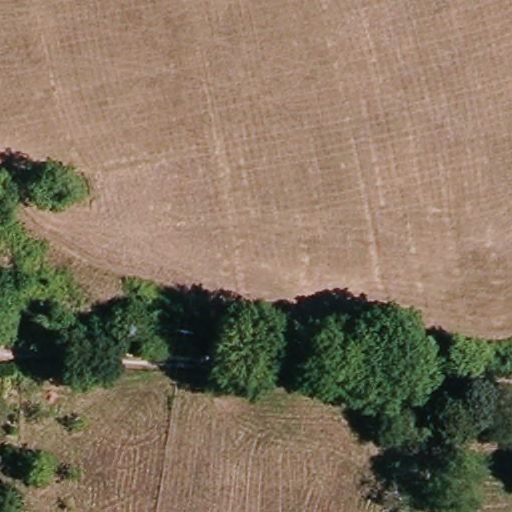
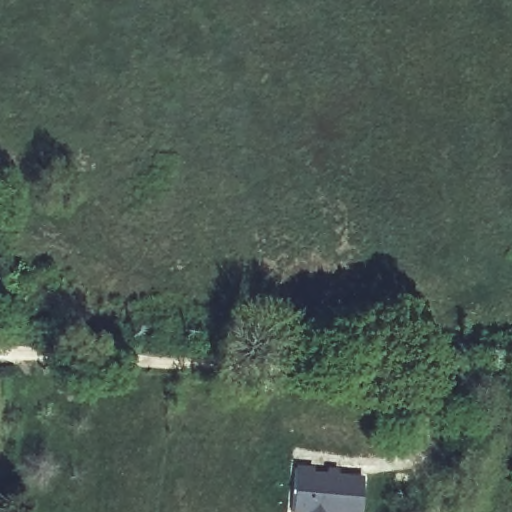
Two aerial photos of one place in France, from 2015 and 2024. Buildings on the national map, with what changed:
new [(311,475),(310,480),(325,480),(325,476),(337,476),(337,481),(362,483),(360,512),(291,512),(294,473),(311,475)]

